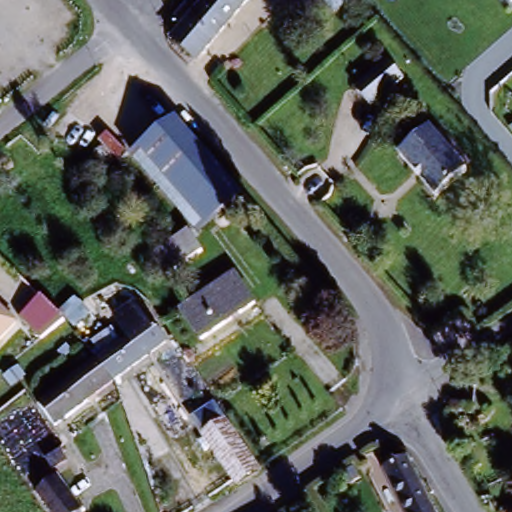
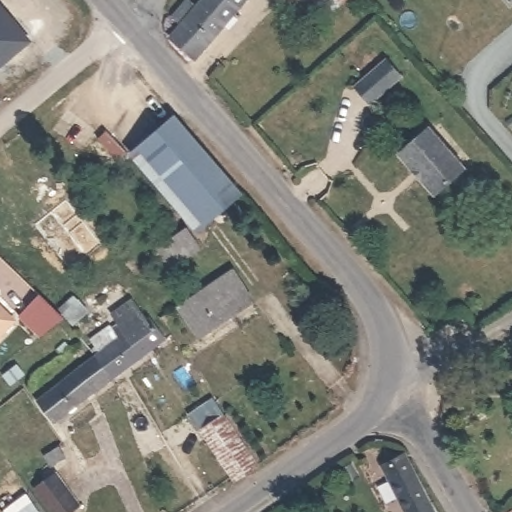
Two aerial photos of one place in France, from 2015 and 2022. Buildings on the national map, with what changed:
unchanged [(202,65),(169,42),(182,26),(173,17),(185,0),(253,0),(202,65)]
unchanged [(342,11),(334,0),(355,0),(342,11)]
unchanged [(509,2),(508,0),(511,0),(509,2)]
new [(30,40),(0,68),(0,7),(30,40)]
unchanged [(410,97),(375,132),(362,114),(397,80),(410,97)]
unchanged [(196,222),(138,157),(178,118),(236,185),(196,222)]
unchanged [(433,132),(442,145),(466,176),(435,201),(412,171),(403,159),(433,132)]
unchanged [(182,225),(195,243),(162,270),(148,252),(182,225)]
unchanged [(237,271),(255,297),(200,336),(182,307),(237,271)]
unchanged [(15,322),(0,338),(0,307),(15,322)]
unchanged [(142,317),(150,329),(155,325),(165,341),(115,373),(102,356),(98,349),(142,317)]
unchanged [(47,410),(37,392),(102,356),(115,373),(47,410)]
unchanged [(257,472),(237,486),(205,437),(225,424),(257,472)]
unchanged [(440,512),(410,512),(387,467),(411,456),(440,512)]
unchanged [(63,512),(54,512),(40,490),(58,477),(77,502),(63,512)]

